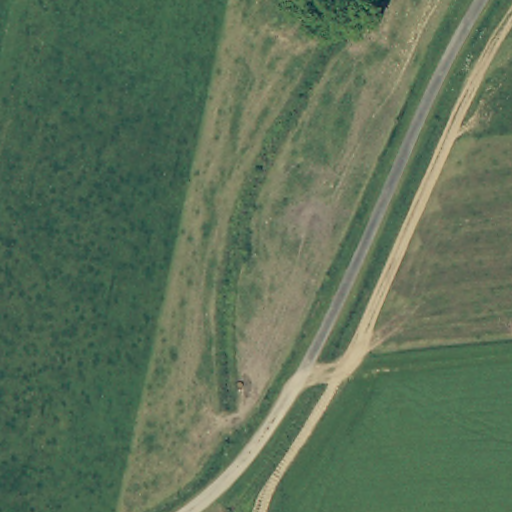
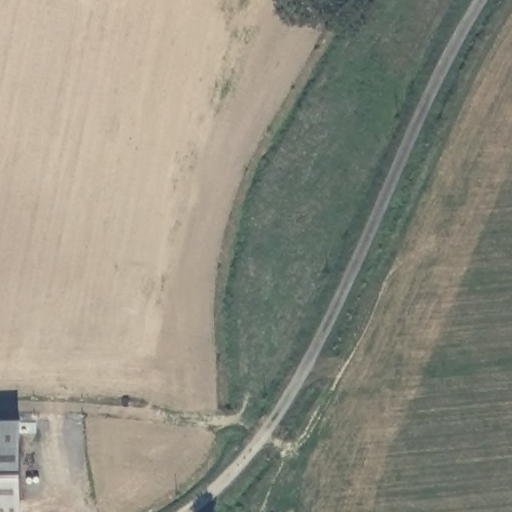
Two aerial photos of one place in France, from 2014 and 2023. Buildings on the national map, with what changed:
new [(23,512),(0,512),(0,419),(21,419),(23,512)]

